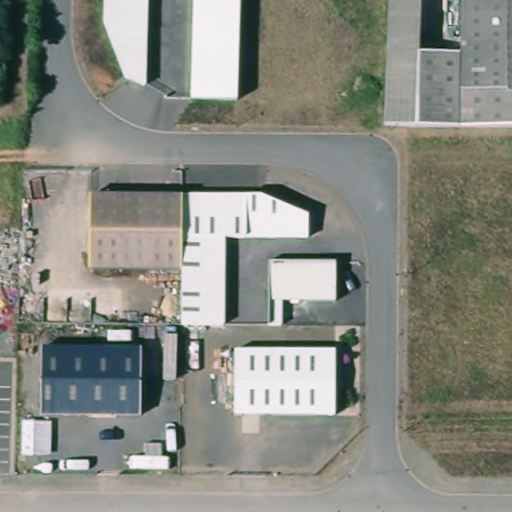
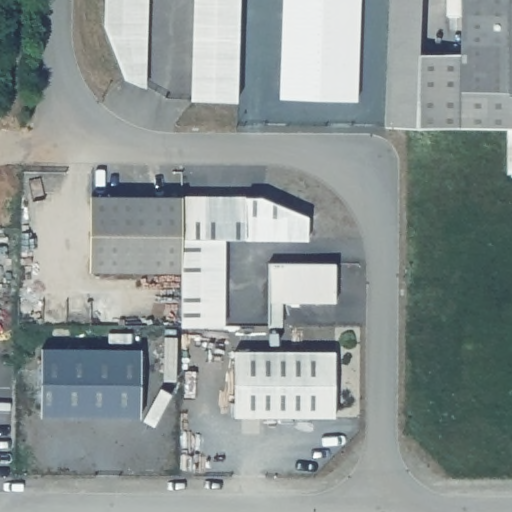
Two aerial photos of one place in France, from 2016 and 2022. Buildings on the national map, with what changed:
unchanged [(145,89),(123,78),(102,25),(103,0),(148,0),(145,89)]
unchanged [(236,102),(191,101),(193,0),(239,0),(236,102)]
new [(283,0),(360,0),(356,100),(280,98),(283,0)]
unchanged [(386,0),(418,0),(416,49),(413,127),(413,131),(382,132),(386,0)]
unchanged [(457,0),(512,0),(512,97),(457,97),(457,51),(457,0)]
unchanged [(457,51),(457,97),(512,97),(512,131),(413,131),(413,127),(416,49),(457,51)]
unchanged [(263,195),(305,215),(305,238),(225,239),(224,327),(180,327),(180,271),(89,270),(90,195),(263,195)]
unchanged [(337,263),(337,305),(284,305),(283,328),(267,327),(268,263),(337,263)]
unchanged [(140,347),(139,416),(38,416),(40,349),(140,347)]
unchanged [(335,350),(335,418),(232,417),(232,350),(335,350)]

